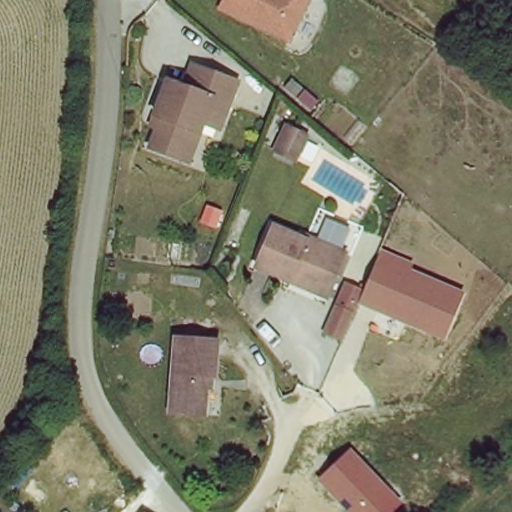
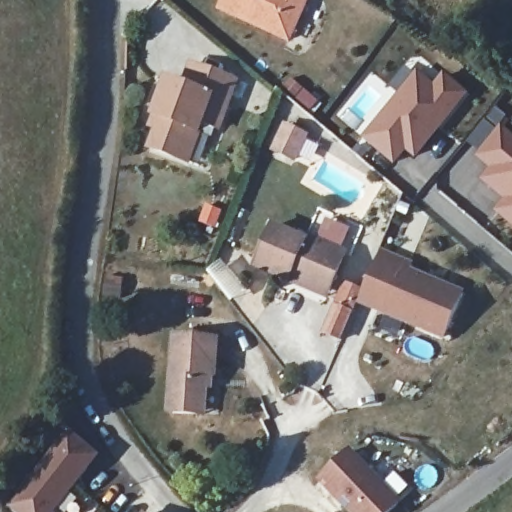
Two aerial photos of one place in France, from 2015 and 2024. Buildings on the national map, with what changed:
unchanged [(301,0),(286,36),(212,6),(215,0),(301,0)]
unchanged [(165,77),(178,82),(185,61),(233,77),(218,127),(199,121),(186,159),(141,141),(165,77)]
new [(414,69),(431,83),(440,71),(464,93),(414,158),(403,151),(392,165),(359,137),(414,69)]
demolished [(271,116),(304,127),(296,155),(263,143),(271,116)]
new [(306,133),(294,162),(269,150),(281,121),(306,133)]
new [(499,124),(512,136),(512,228),(491,210),(500,200),(476,179),(486,167),(474,157),(499,124)]
unchanged [(315,239),(324,217),(348,226),(340,249),(328,290),(253,261),(269,221),(315,239)]
unchanged [(446,341),(359,304),(341,341),(321,333),(345,281),(364,290),(381,249),(415,263),(413,269),(462,290),(446,341)]
unchanged [(173,330),(216,335),(213,382),(204,383),(201,412),(167,407),(173,330)]
new [(64,428),(95,453),(51,512),(14,512),(5,504),(64,428)]
unchanged [(400,504),(392,512),(351,512),(322,479),(354,451),(400,504)]
unchanged [(158,509),(158,508),(162,512),(155,512),(158,509)]

